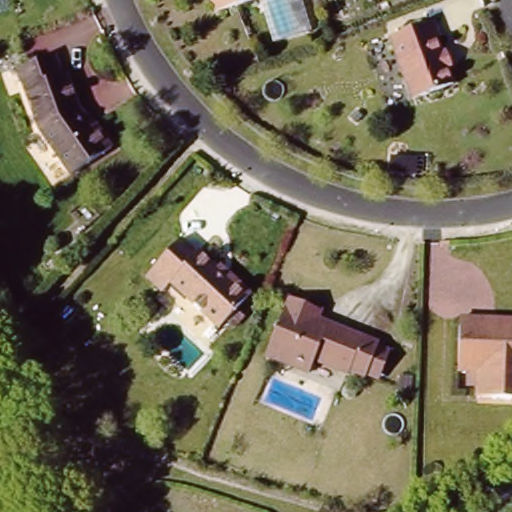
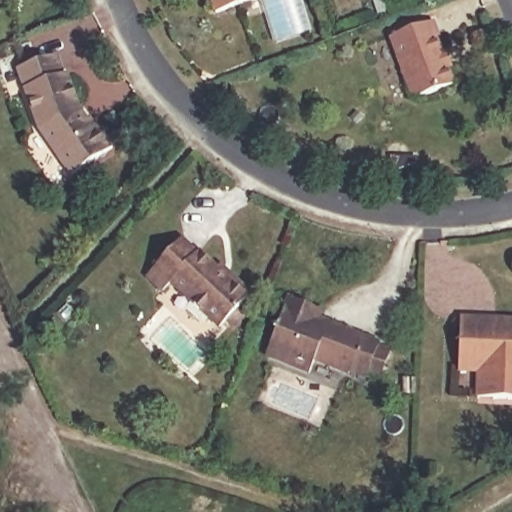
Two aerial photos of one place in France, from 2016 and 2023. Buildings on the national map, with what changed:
unchanged [(15,0),(15,4),(0,3),(0,0),(15,0)]
unchanged [(262,0),(264,6),(214,21),(206,0),(262,0)]
unchanged [(393,30),(437,18),(457,79),(412,95),(393,30)]
unchanged [(43,133),(18,64),(61,50),(71,69),(82,103),(118,143),(75,171),(43,133)]
unchanged [(184,236),(219,265),(222,261),(253,288),(223,325),(174,281),(166,288),(148,272),(184,236)]
unchanged [(318,369),(313,385),(267,364),(289,303),(326,319),(321,331),(383,352),(365,390),(318,369)]
unchanged [(458,382),(464,321),(512,325),(512,410),(474,409),(476,383),(458,382)]

